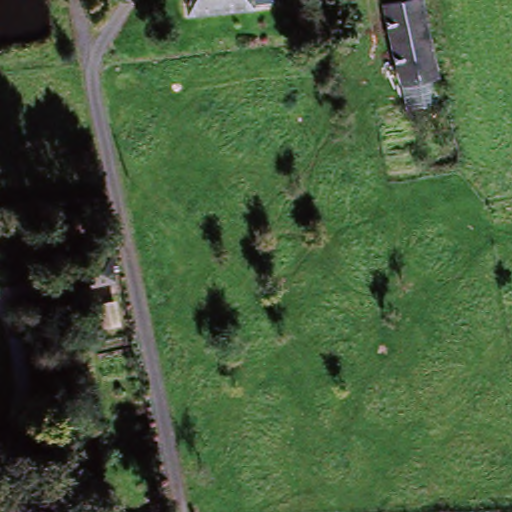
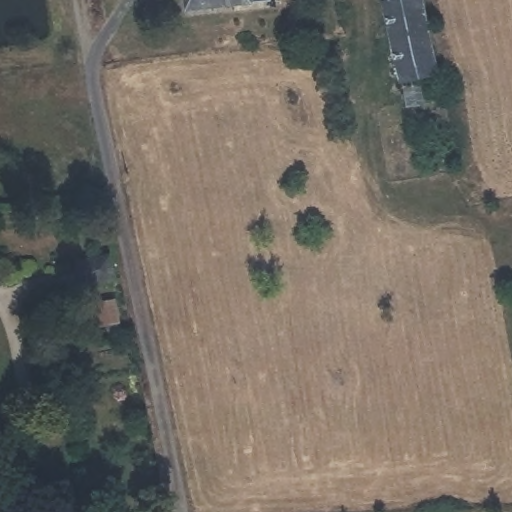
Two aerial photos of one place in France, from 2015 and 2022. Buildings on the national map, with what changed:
unchanged [(268,0),(268,5),(253,6),(186,13),(184,0),(268,0)]
unchanged [(401,75),(385,4),(404,0),(420,0),(435,68),(442,96),(408,103),(401,75)]
unchanged [(87,284),(82,264),(106,258),(109,279),(87,284)]

